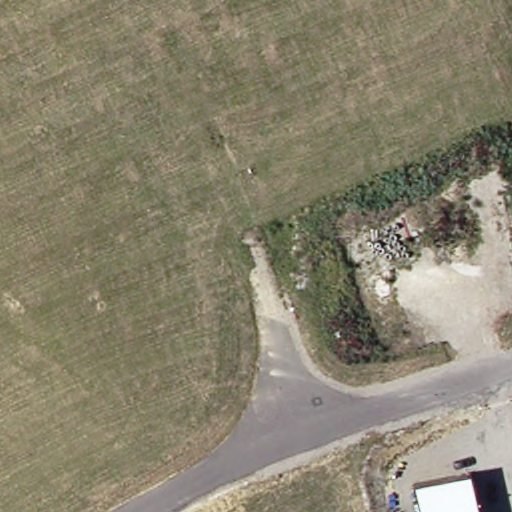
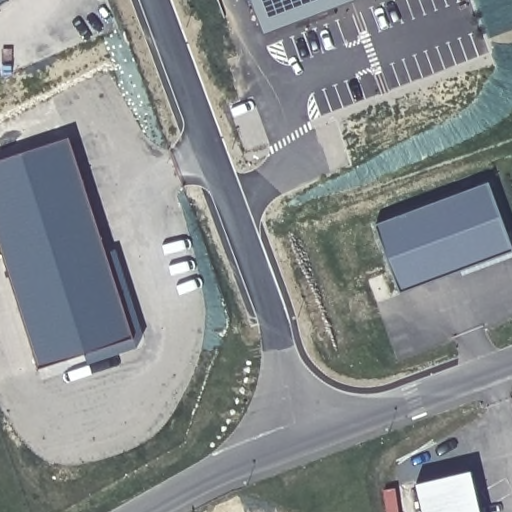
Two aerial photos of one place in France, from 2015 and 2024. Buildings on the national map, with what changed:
new [(0,0),(7,0),(8,3),(0,9),(0,0)]
new [(263,35),(251,0),(357,0),(263,35)]
new [(138,343),(41,373),(0,247),(0,163),(71,141),(138,343)]
new [(374,230),(489,187),(512,249),(512,255),(400,298),(374,230)]
unchanged [(473,468),(485,512),(426,512),(419,483),(473,468)]

